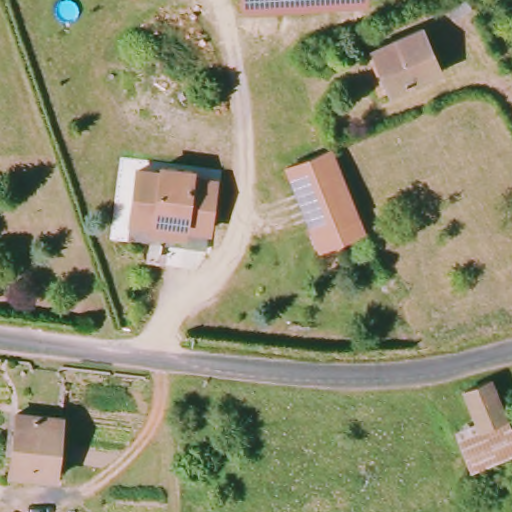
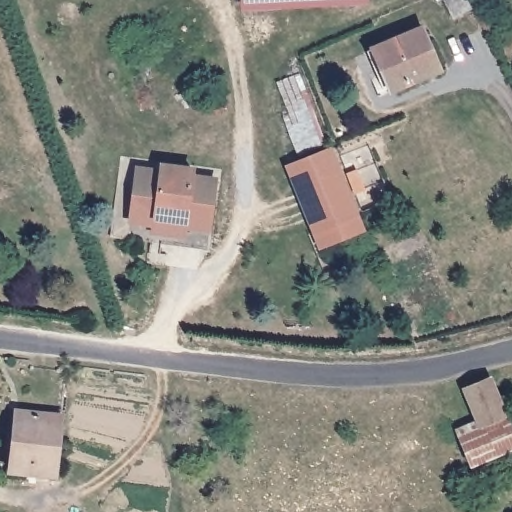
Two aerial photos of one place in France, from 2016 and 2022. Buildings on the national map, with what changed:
unchanged [(360,2),(237,10),(237,0),(360,0),(360,2)]
unchanged [(369,52),(419,31),(438,72),(387,95),(369,52)]
unchanged [(325,250),(318,235),(291,170),(334,152),(362,217),(368,232),(325,250)]
unchanged [(206,245),(128,238),(135,169),(158,171),(159,162),(191,166),(190,174),(213,176),(206,245)]
unchanged [(512,453),(463,467),(452,430),(474,423),(467,391),(495,385),(512,449),(512,453)]
unchanged [(48,476),(7,472),(9,408),(52,412),(48,476)]

